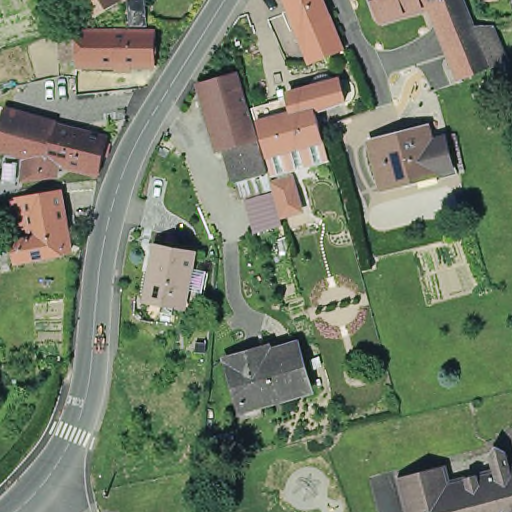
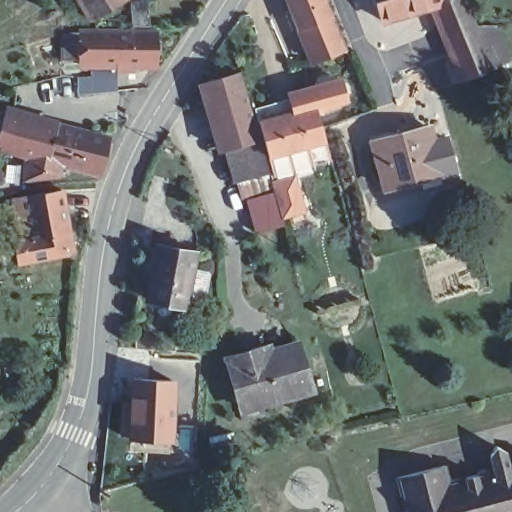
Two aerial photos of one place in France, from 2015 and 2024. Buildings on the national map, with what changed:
unchanged [(82,0),(117,0),(92,15),(82,0)]
unchanged [(151,0),(151,21),(135,21),(132,21),(132,0),(151,0)]
unchanged [(335,77),(327,81),(317,59),(293,0),(330,0),(349,46),(350,45),(359,69),(335,77)]
unchanged [(382,22),(374,0),(446,0),(446,1),(434,7),(400,17),(382,22)]
unchanged [(446,1),(447,0),(466,0),(476,26),(477,26),(493,25),(500,40),(508,61),(478,74),(462,80),(434,7),(446,1)]
unchanged [(487,0),(512,0),(512,3),(487,6),(487,0)]
unchanged [(119,26),(119,60),(80,60),(80,56),(63,56),(62,29),(79,26),(119,26)]
unchanged [(119,26),(158,26),(158,61),(119,60),(119,26)]
unchanged [(258,119),(324,105),(332,146),(275,159),(280,179),(235,189),(213,82),(248,75),(258,119)]
unchanged [(67,165),(65,176),(30,181),(32,156),(2,148),(11,113),(32,118),(32,117),(115,139),(107,175),(67,165)]
unchanged [(387,187),(376,146),(395,141),(395,137),(429,128),(432,141),(445,138),(455,170),(440,174),(422,178),(387,187)]
unchanged [(294,179),(302,209),(282,215),(274,185),(294,179)]
unchanged [(73,253),(0,266),(0,244),(34,239),(32,229),(12,231),(7,201),(62,190),(73,253)]
unchanged [(182,318),(143,311),(147,288),(153,260),(157,261),(192,267),(182,318)]
unchanged [(247,416),(243,399),(247,398),(234,354),(260,347),(261,353),(303,341),(315,384),(269,398),(272,409),(247,416)]
new [(175,381),(173,430),(150,429),(150,441),(131,440),(131,435),(122,435),(124,403),(133,403),(135,379),(175,381)]
unchanged [(402,478),(438,470),(450,466),(455,482),(500,471),(495,457),(500,447),(511,453),(512,457),(512,512),(411,512),(402,478)]

